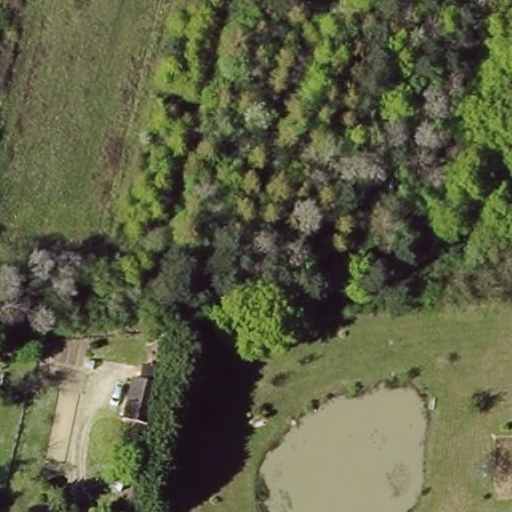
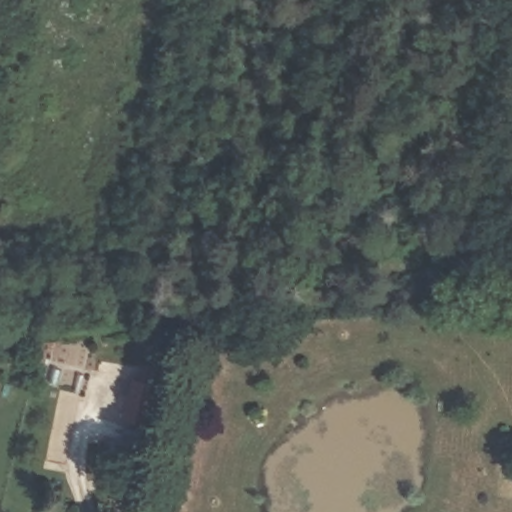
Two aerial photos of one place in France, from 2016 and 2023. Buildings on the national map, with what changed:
unchanged [(157,370),(147,412),(123,408),(130,366),(157,370)]

